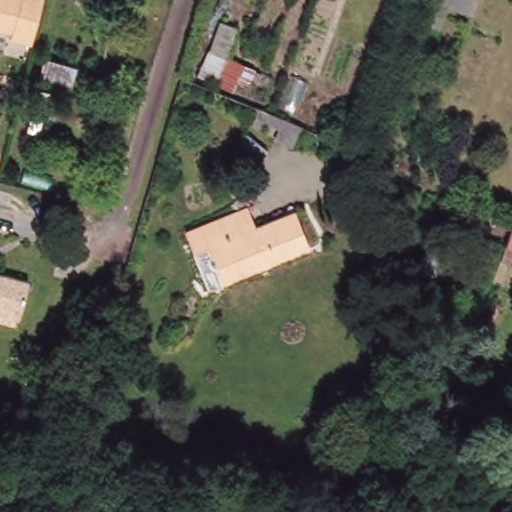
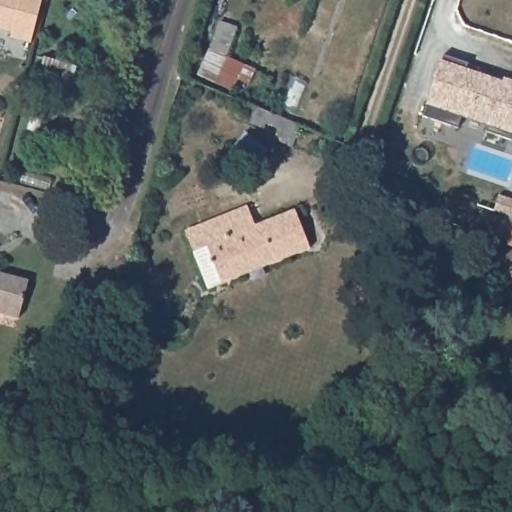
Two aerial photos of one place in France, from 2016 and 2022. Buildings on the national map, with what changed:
unchanged [(31,48),(7,42),(9,33),(0,30),(0,0),(43,0),(31,48)]
demolished [(472,12),(447,5),(449,0),(475,0),(472,12)]
demolished [(445,15),(436,44),(420,38),(430,9),(445,15)]
unchanged [(220,21),(237,27),(227,57),(256,70),(250,85),(239,80),(234,91),(197,75),(209,51),(220,21)]
new [(467,63),(465,70),(486,77),(502,83),(503,78),(512,81),(512,141),(485,131),(487,125),(461,116),(457,128),(422,116),(442,55),(467,63)]
unchanged [(75,68),(71,84),(40,76),(44,59),(75,68)]
unchanged [(263,128),(251,123),(257,108),(286,120),(301,126),(293,147),(276,140),(280,128),(266,123),(263,128)]
unchanged [(418,192),(413,208),(386,197),(392,182),(418,192)]
unchanged [(448,210),(495,227),(491,238),(445,220),(448,210)]
unchanged [(212,289),(199,294),(177,236),(237,211),(246,230),(285,214),(297,245),(301,253),(212,289)]
unchanged [(505,244),(512,224),(512,246),(505,244)]
unchanged [(14,319),(0,315),(0,274),(24,281),(14,319)]

